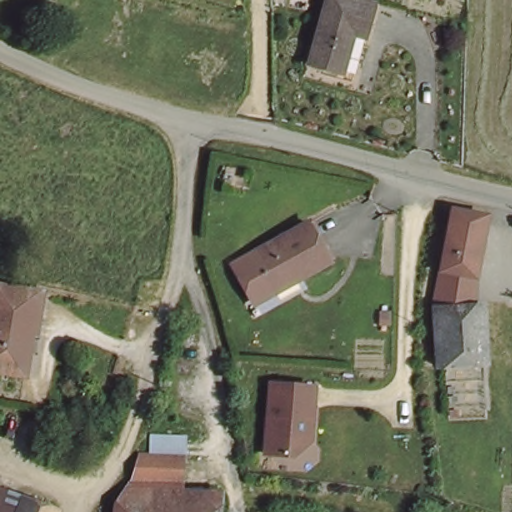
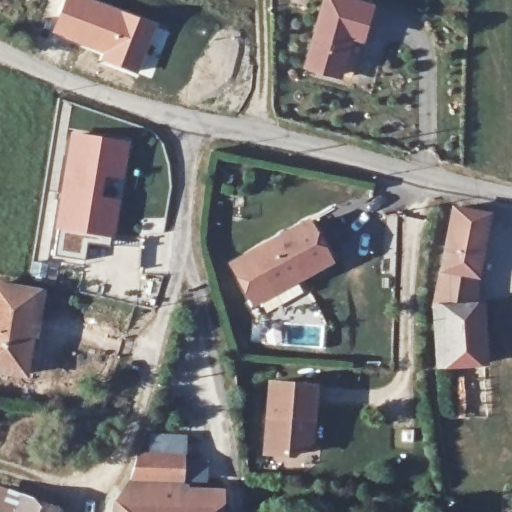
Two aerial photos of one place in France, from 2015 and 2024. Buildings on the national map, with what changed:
new [(95,0),(138,15),(118,68),(98,60),(102,54),(50,33),(63,0),(95,0)]
unchanged [(309,66),(325,0),(348,0),(371,6),(360,46),(352,77),(339,73),(309,66)]
new [(138,15),(157,23),(137,75),(118,68),(138,15)]
new [(123,180),(105,177),(101,197),(120,200),(113,238),(109,238),(107,247),(87,244),(83,261),(55,255),(58,229),(55,229),(70,133),(128,142),(123,180)]
unchanged [(487,220),(475,283),(458,279),(452,313),(475,311),(477,371),(435,376),(432,303),(454,212),(487,220)]
unchanged [(332,258),(307,274),(303,269),(255,300),(236,266),(308,222),(332,258)]
unchanged [(33,347),(27,346),(17,383),(0,379),(0,289),(46,300),(33,347)]
unchanged [(303,442),(302,448),(292,457),(263,454),(270,384),(314,388),(311,420),(309,442),(303,442)]
unchanged [(128,501),(144,485),(150,459),(158,460),(162,437),(197,440),(195,460),(190,491),(227,498),(224,512),(126,512),(128,501)]
unchanged [(0,494),(22,503),(47,512),(0,512),(0,494)]

